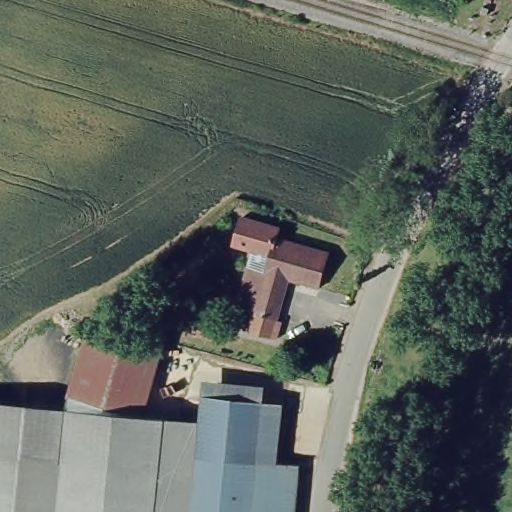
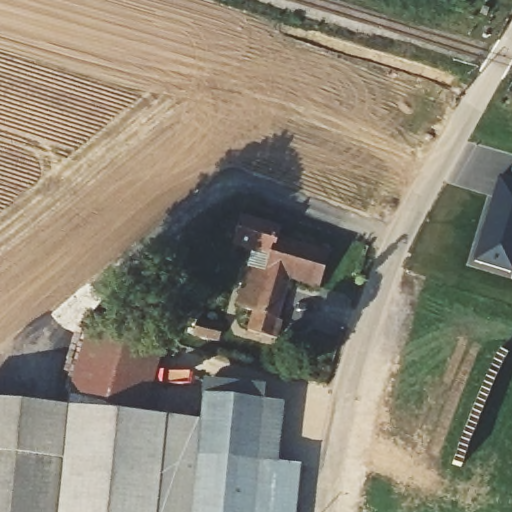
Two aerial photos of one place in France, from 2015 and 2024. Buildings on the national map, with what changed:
new [(512,180),(512,274),(472,262),(498,177),(512,180)]
unchanged [(247,259),(252,242),(233,238),(241,209),(277,219),(275,229),(329,243),(320,278),(289,269),(278,310),(287,313),(282,332),(248,323),(249,320),(253,302),(237,298),(247,259)]
unchanged [(154,305),(150,319),(132,314),(136,301),(154,305)]
unchanged [(88,322),(103,324),(162,340),(143,414),(71,394),(88,322)]
unchanged [(169,454),(198,454),(201,398),(202,381),(261,384),(260,402),(277,404),(272,462),(296,464),(293,512),(164,512),(169,454)]
unchanged [(143,414),(165,419),(158,512),(60,512),(71,394),(143,414)]
unchanged [(0,402),(70,409),(60,512),(0,512),(0,402)]

